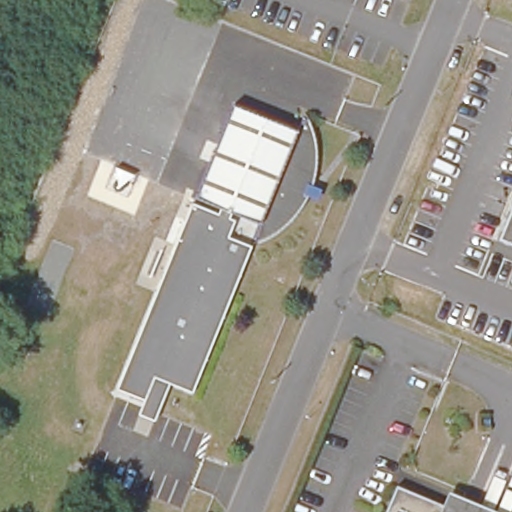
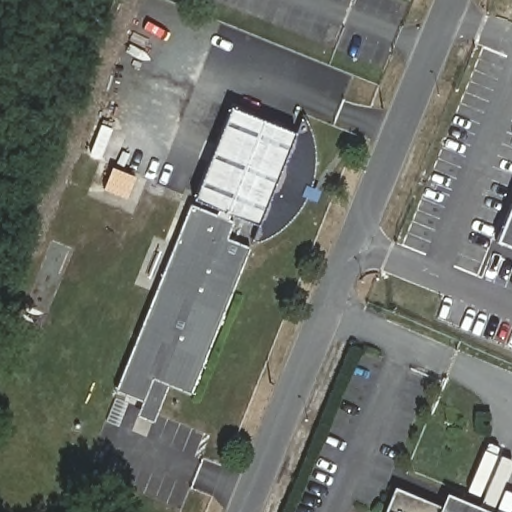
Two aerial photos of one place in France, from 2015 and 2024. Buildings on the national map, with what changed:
unchanged [(240,99),(306,123),(310,111),(315,121),(318,141),(317,164),(312,181),(309,193),(300,206),(287,221),(278,228),(271,233),(262,237),(270,220),(262,216),(202,192),(240,99)]
unchanged [(191,204),(217,215),(220,207),(197,198),(202,192),(262,216),(260,223),(231,211),(230,212),(227,219),(235,222),(228,238),(250,247),(193,393),(172,385),(156,422),(137,416),(143,400),(118,390),(191,204)]
unchanged [(512,218),(512,252),(500,248),(512,218)]
unchanged [(395,493),(440,512),(386,512),(395,493)]
unchanged [(446,500),(476,512),(441,512),(446,500)]

